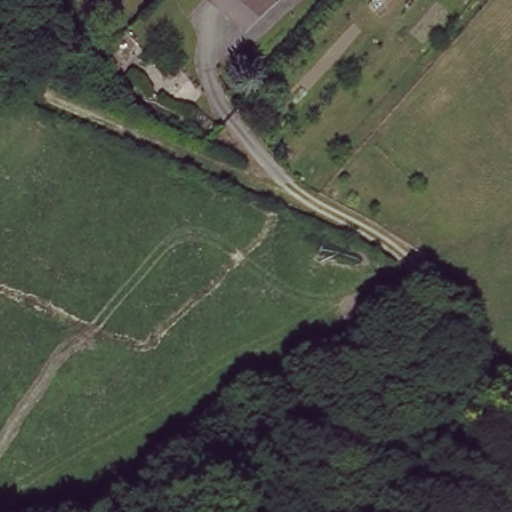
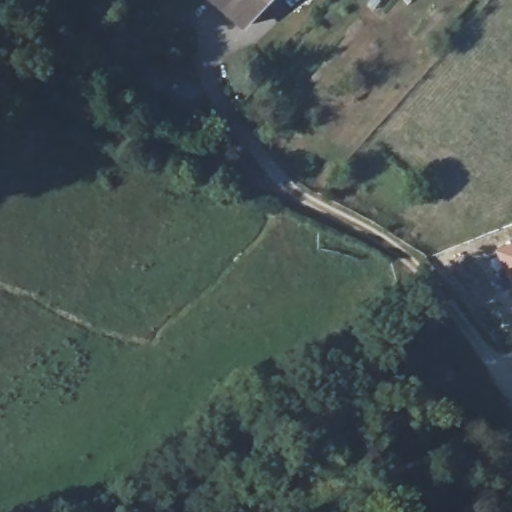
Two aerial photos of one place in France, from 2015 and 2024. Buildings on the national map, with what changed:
unchanged [(268,2),(255,18),(233,0),(270,0),(268,2)]
new [(512,239),(512,288),(510,288),(490,250),(512,239)]

